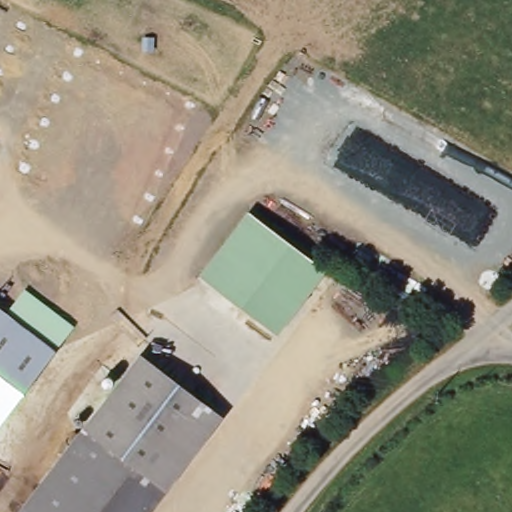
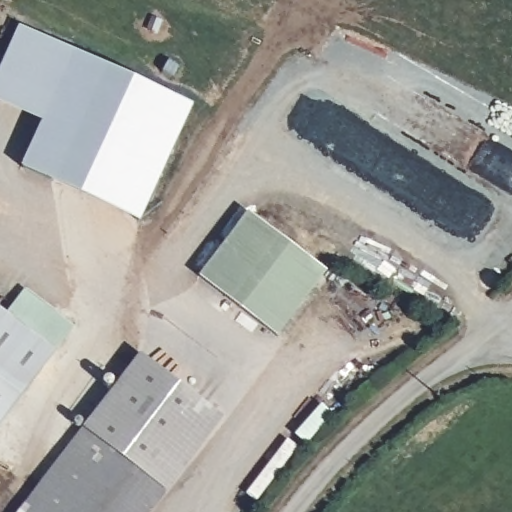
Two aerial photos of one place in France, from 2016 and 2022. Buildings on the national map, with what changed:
new [(167,108),(98,216),(0,154),(0,133),(31,85),(0,65),(0,22),(9,7),(167,108)]
unchanged [(325,273),(275,334),(198,277),(248,215),(325,273)]
unchanged [(25,291),(73,327),(56,349),(0,424),(0,307),(6,312),(25,291)]
unchanged [(208,397),(155,474),(129,512),(71,512),(38,493),(136,352),(208,397)]
unchanged [(71,512),(26,512),(38,493),(71,512)]

